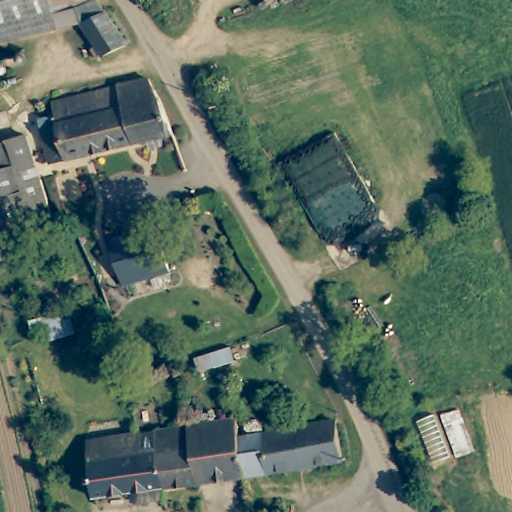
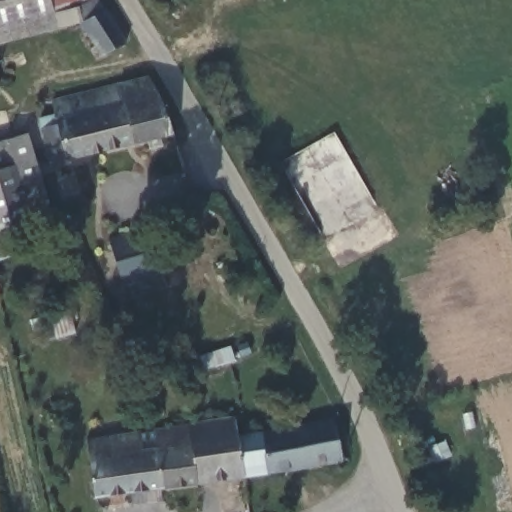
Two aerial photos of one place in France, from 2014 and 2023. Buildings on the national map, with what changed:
unchanged [(102,16),(120,49),(99,59),(79,25),(79,24),(70,10),(0,30),(0,0),(92,0),(102,16)]
unchanged [(152,80),(165,99),(177,132),(165,136),(166,144),(155,147),(153,139),(54,162),(45,124),(57,120),(54,104),(152,80)]
unchanged [(25,136),(52,217),(32,228),(31,225),(4,144),(25,136)]
unchanged [(0,145),(4,144),(31,225),(0,236),(0,145)]
unchanged [(159,202),(165,228),(159,230),(170,277),(108,293),(97,246),(114,241),(113,239),(101,241),(100,235),(89,238),(85,225),(96,222),(95,219),(159,202)]
unchanged [(11,255),(0,259),(0,245),(8,243),(11,255)]
unchanged [(140,505),(137,502),(133,500),(132,496),(131,493),(120,495),(115,460),(143,456),(140,432),(155,430),(237,416),(240,436),(248,473),(248,475),(163,488),(165,500),(140,505)]
unchanged [(240,436),(247,435),(336,418),(343,457),(249,476),(248,475),(248,473),(240,436)]
unchanged [(93,440),(140,432),(143,456),(115,460),(120,495),(99,497),(90,440),(93,440)]

